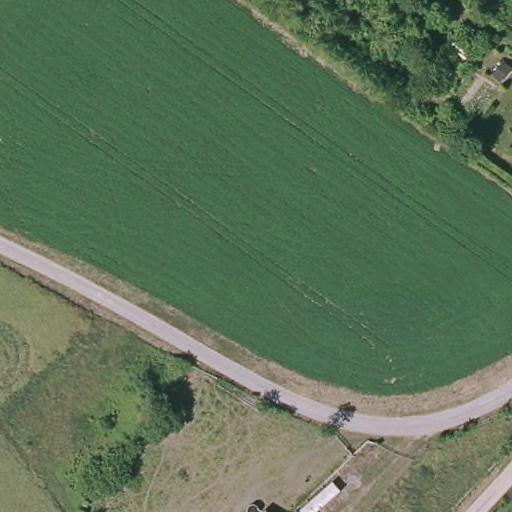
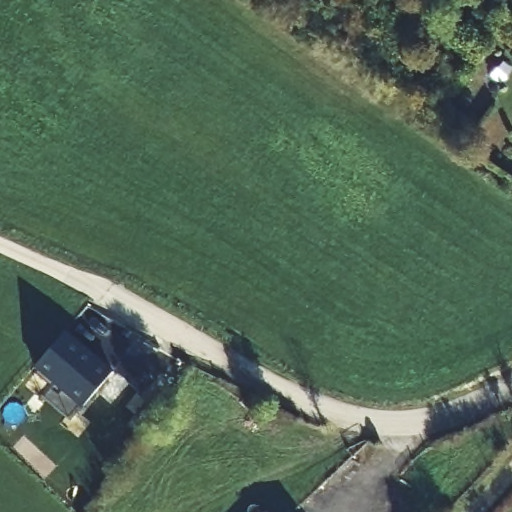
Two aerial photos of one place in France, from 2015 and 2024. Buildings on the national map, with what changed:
unchanged [(478,0),(499,0),(494,9),(478,0)]
new [(114,370),(82,407),(35,367),(67,330),(114,370)]
unchanged [(266,512),(264,512),(265,511),(266,512)]

